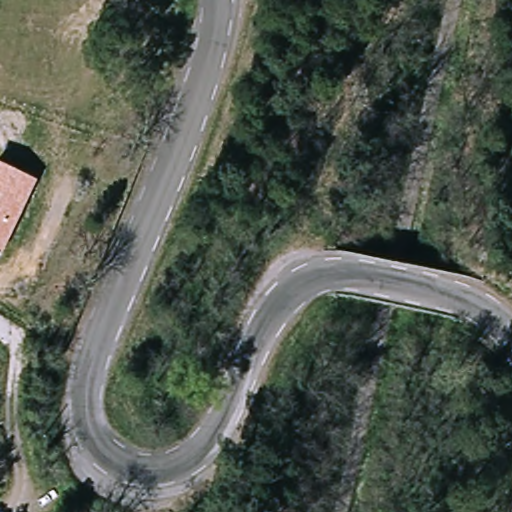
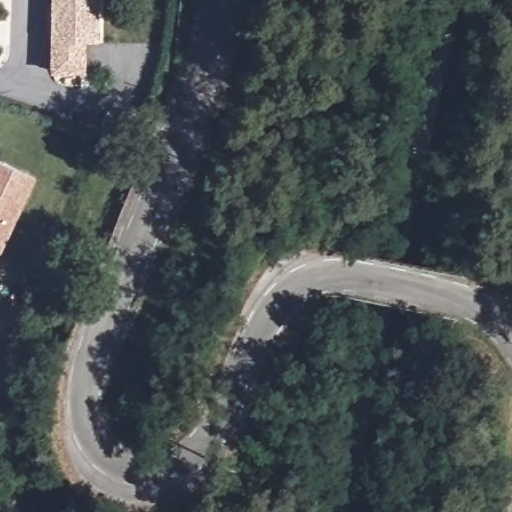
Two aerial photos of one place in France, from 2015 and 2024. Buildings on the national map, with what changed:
new [(98,38),(55,38),(55,0),(99,0),(98,38)]
new [(87,39),(87,66),(55,66),(55,38),(87,39)]
unchanged [(36,179),(2,254),(0,253),(0,163),(36,179)]

